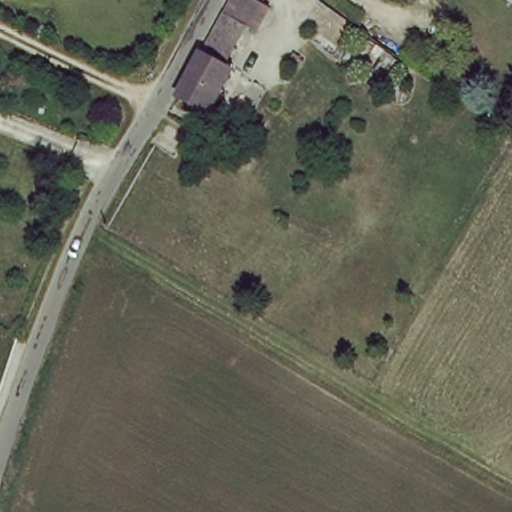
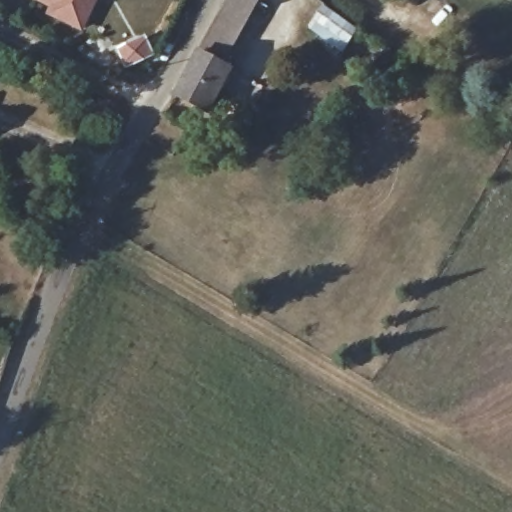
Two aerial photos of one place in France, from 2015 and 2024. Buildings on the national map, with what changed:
new [(83,31),(46,14),(50,6),(33,0),(98,0),(83,31)]
unchanged [(232,0),(263,0),(249,27),(227,67),(236,73),(212,115),(179,97),(226,14),(232,0)]

